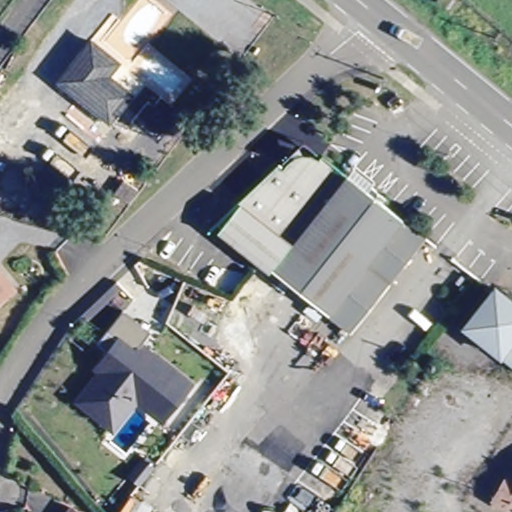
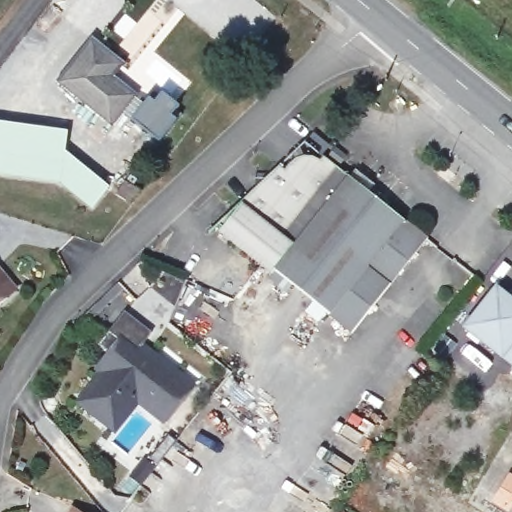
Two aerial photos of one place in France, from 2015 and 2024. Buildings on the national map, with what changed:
unchanged [(90,44),(119,66),(107,80),(131,99),(108,126),(57,86),(90,44)]
new [(159,142),(131,120),(121,110),(131,99),(132,97),(142,105),(146,99),(154,105),(163,92),(180,106),(171,117),(176,122),(159,142)]
new [(59,185),(0,176),(0,123),(67,132),(66,153),(109,188),(92,210),(59,185)]
unchanged [(282,270),(276,265),(272,269),(263,261),(222,227),(226,222),(221,219),(293,128),(337,162),(368,186),(372,180),(387,191),(383,195),(406,212),(432,233),(396,280),(360,327),(359,327),(298,282),(292,290),(277,277),(282,270)]
unchanged [(107,192),(117,181),(130,192),(120,204),(107,192)]
unchanged [(0,266),(17,285),(0,301),(0,266)]
unchanged [(456,319),(483,282),(496,292),(499,287),(512,297),(512,302),(511,303),(512,304),(512,368),(456,319)]
unchanged [(110,431),(86,413),(107,383),(103,380),(113,366),(100,357),(110,342),(126,321),(152,341),(142,355),(190,391),(165,425),(143,409),(121,440),(110,431)]
unchanged [(501,505),(512,487),(512,512),(501,505)]
unchanged [(78,512),(70,512),(72,508),(78,512)]

